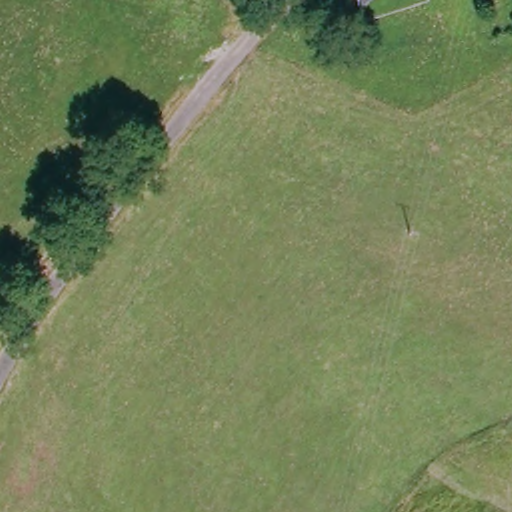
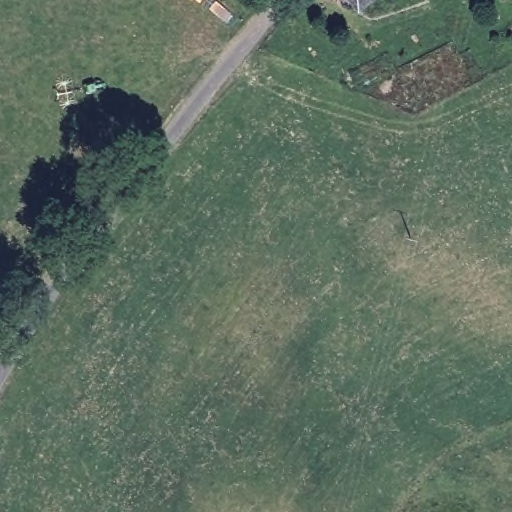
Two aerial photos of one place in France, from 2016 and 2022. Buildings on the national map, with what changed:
unchanged [(355,13),(345,0),(369,0),(355,13)]

